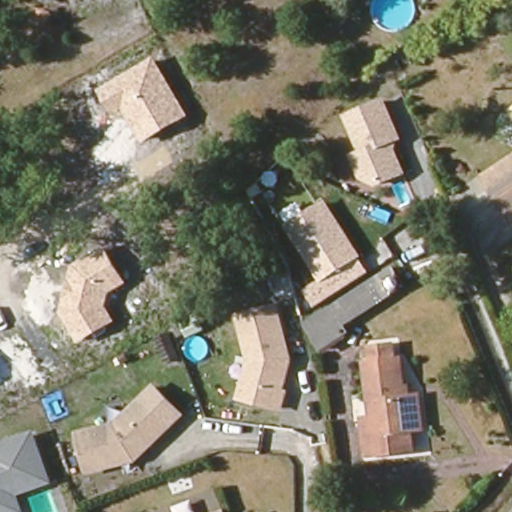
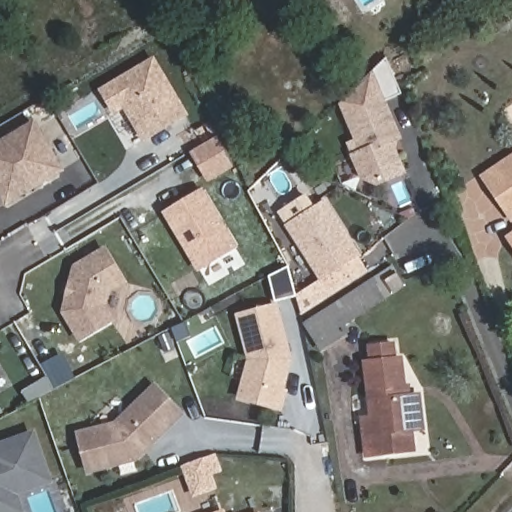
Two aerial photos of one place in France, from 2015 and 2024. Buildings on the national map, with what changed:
unchanged [(147,144),(130,113),(120,118),(105,90),(160,59),(192,116),(147,144)]
unchanged [(399,142),(398,150),(408,175),(376,187),(364,181),(352,152),(361,148),(346,115),(388,97),(406,138),(399,142)]
new [(0,196),(0,141),(35,119),(66,171),(7,207),(0,196)]
unchanged [(511,218),(484,175),(512,156),(512,217),(511,218)]
new [(199,273),(162,212),(204,187),(241,247),(199,273)]
unchanged [(323,284),(287,228),(327,199),(364,255),(323,284)]
unchanged [(114,291),(108,309),(113,321),(75,342),(65,317),(69,269),(108,248),(126,281),(114,291)]
unchanged [(407,287),(348,324),(353,334),(323,355),(302,324),(394,265),(407,287)]
unchanged [(286,390),(292,392),(285,413),(236,400),(247,359),(236,314),(280,303),(295,359),(286,390)]
unchanged [(382,455),(362,458),(358,421),(368,419),(362,365),(366,364),(364,348),(391,344),(393,361),(397,361),(401,399),(409,398),(415,397),(419,430),(413,431),(415,451),(382,455)]
new [(48,373),(42,364),(61,352),(74,375),(56,386),(28,400),(21,389),(31,382),(48,373)]
unchanged [(116,422),(156,383),(187,414),(135,464),(84,475),(75,431),(116,422)]
unchanged [(20,496),(26,512),(0,512),(0,442),(37,430),(56,484),(20,496)]
unchanged [(221,510),(222,512),(217,512),(221,510)]

